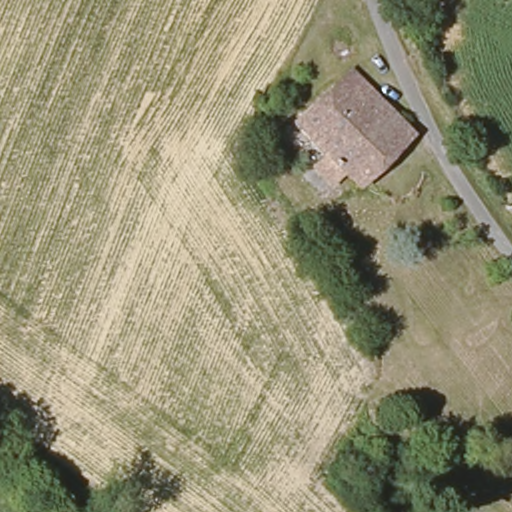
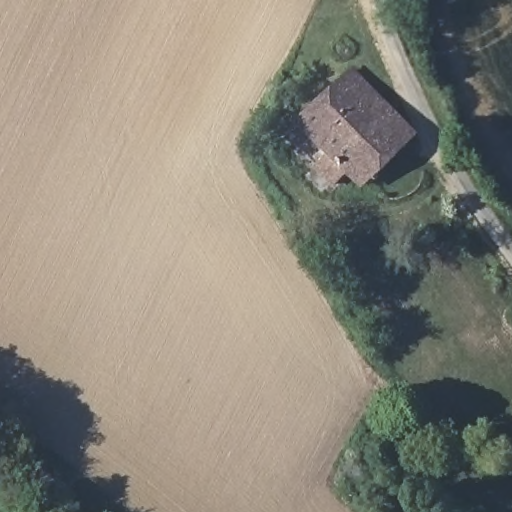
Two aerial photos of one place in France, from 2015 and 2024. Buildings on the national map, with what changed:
unchanged [(347,67),(340,76),(328,65),(337,58),(347,67)]
unchanged [(418,137),(364,196),(350,181),(330,200),(299,171),(318,152),(302,135),(356,80),(418,137)]

